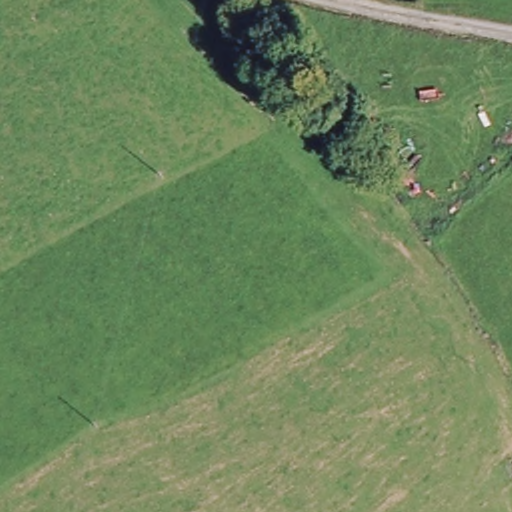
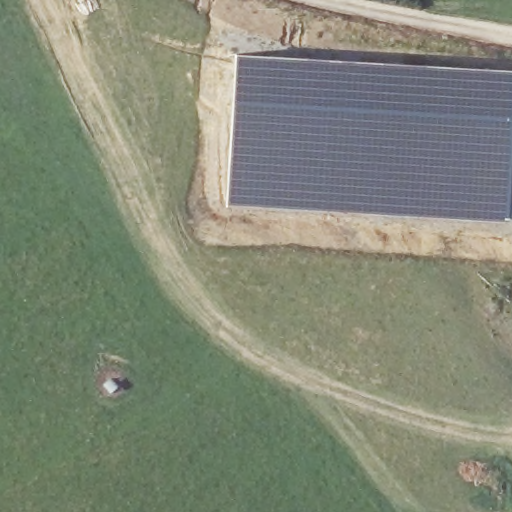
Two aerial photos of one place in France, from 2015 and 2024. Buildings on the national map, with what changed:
new [(234,50),(279,50),(371,57),(472,60),(512,65),(512,193),(510,218),(483,219),(386,216),(225,206),(234,50)]

